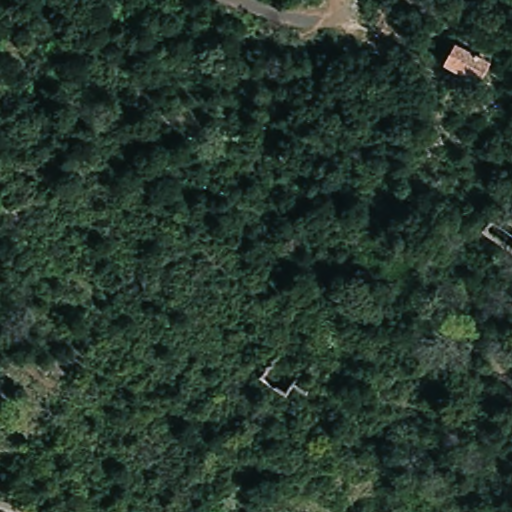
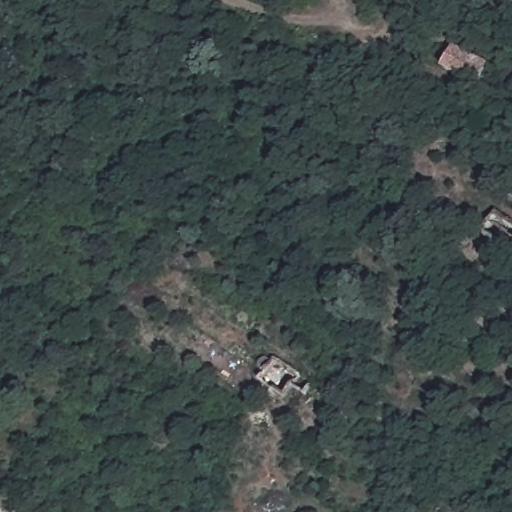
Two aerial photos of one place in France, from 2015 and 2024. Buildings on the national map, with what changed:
unchanged [(477,89),(441,71),(453,46),(489,65),(477,89)]
unchanged [(352,390),(346,402),(332,395),(324,411),(295,395),(309,367),(352,390)]

